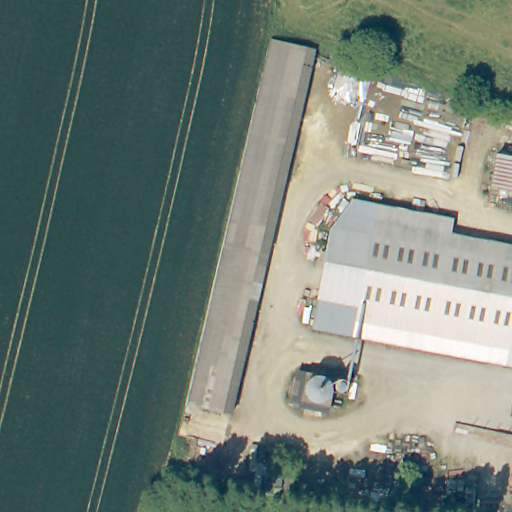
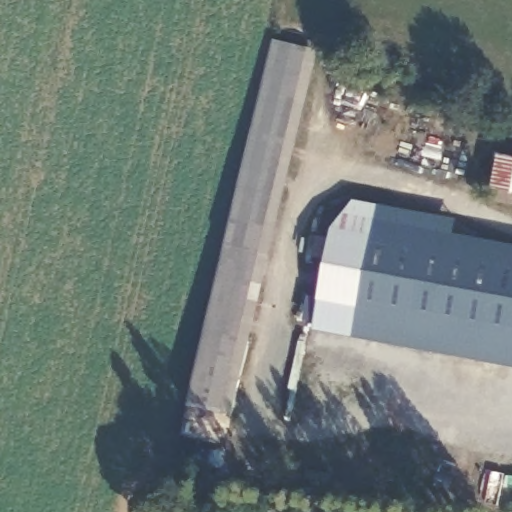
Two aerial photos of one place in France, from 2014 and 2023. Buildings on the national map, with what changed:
unchanged [(244,341),(205,333),(211,303),(273,35),(311,47),(250,317),(244,341)]
unchanged [(487,190),(495,156),(512,159),(512,195),(487,190)]
unchanged [(450,220),(445,252),(330,232),(352,202),(450,220)]
unchanged [(445,252),(512,263),(512,366),(355,339),(357,311),(317,304),(330,232),(445,252)]
unchanged [(244,341),(250,343),(231,416),(188,407),(205,333),(244,341)]
unchanged [(354,384),(352,400),(340,400),(337,414),(305,409),(310,378),(354,384)]

